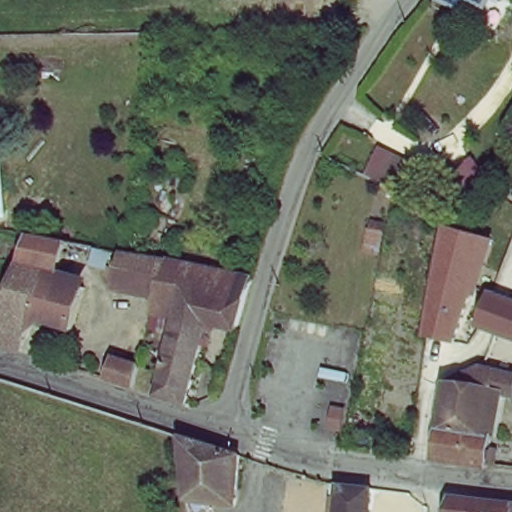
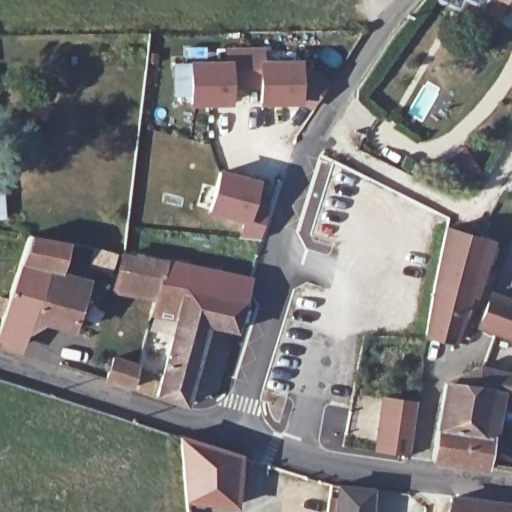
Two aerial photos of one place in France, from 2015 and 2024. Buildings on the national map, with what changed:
new [(230,65),(230,52),(264,52),(264,65),(301,65),(301,67),(331,87),(316,110),(301,100),(301,104),(264,104),(263,87),(231,88),(231,104),(193,105),(193,65),(230,65)]
new [(257,182),(252,201),(269,205),(260,239),(241,237),(246,219),(210,210),(221,172),(257,182)]
unchanged [(450,227),(491,236),(482,266),(460,340),(429,334),(450,227)]
unchanged [(0,342),(10,312),(33,235),(71,242),(61,277),(88,285),(75,328),(28,316),(18,348),(0,342)]
unchanged [(156,290),(120,282),(126,253),(163,260),(156,290)]
unchanged [(176,316),(151,312),(156,290),(163,260),(187,264),(176,316)]
unchanged [(250,276),(236,328),(208,322),(187,403),(159,395),(176,316),(187,264),(250,276)]
unchanged [(477,333),(490,302),(512,310),(512,346),(477,333)]
new [(301,324),(296,338),(272,331),(276,317),(301,324)]
unchanged [(135,387),(107,378),(114,357),(141,363),(135,387)]
unchanged [(483,366),(512,373),(512,399),(496,396),(497,391),(448,382),(483,366)]
unchanged [(497,391),(496,396),(489,435),(496,435),(493,465),(492,469),(433,460),(448,382),(497,391)]
new [(380,395),(416,400),(408,454),(373,450),(380,395)]
unchanged [(239,504),(187,501),(180,435),(240,455),(239,504)]
unchanged [(375,490),(373,512),(341,512),(344,488),(345,488),(375,490)]
unchanged [(450,512),(453,503),(493,508),(495,503),(512,506),(512,512),(450,512)]

